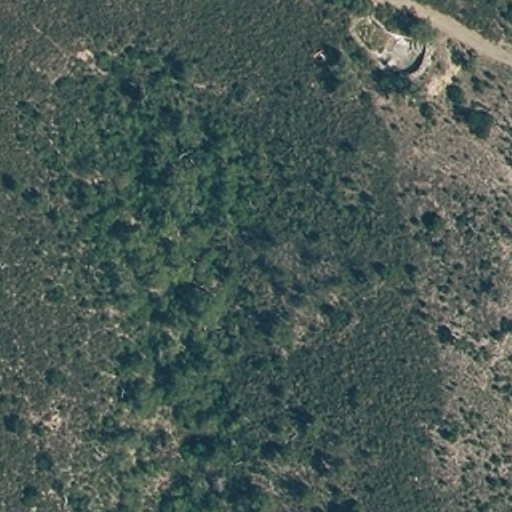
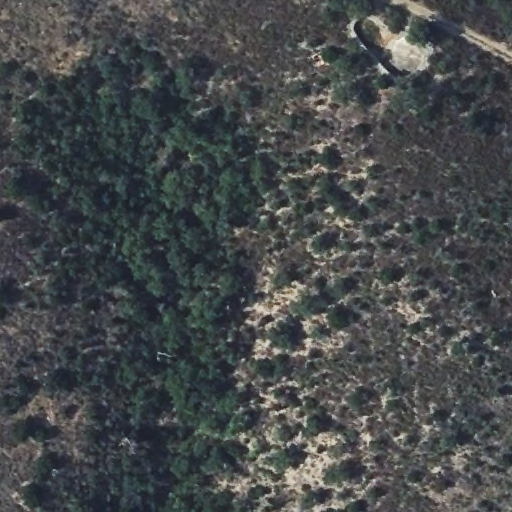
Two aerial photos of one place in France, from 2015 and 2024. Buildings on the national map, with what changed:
[]

